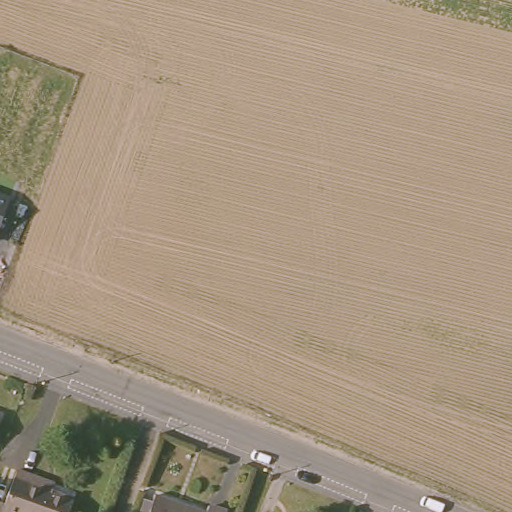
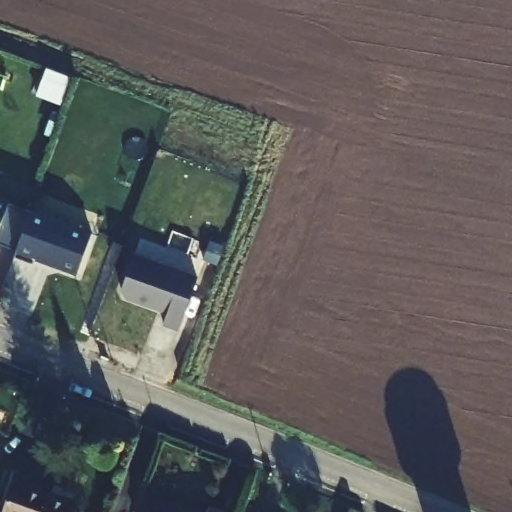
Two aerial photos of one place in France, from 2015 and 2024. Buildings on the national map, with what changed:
unchanged [(0,236),(0,189),(11,194),(0,236)]
new [(92,233),(77,273),(35,258),(33,263),(14,256),(31,211),(92,233)]
new [(125,298),(127,294),(122,292),(135,254),(198,276),(178,330),(163,325),(168,313),(125,298)]
unchanged [(3,512),(18,469),(37,475),(33,485),(75,500),(69,512),(3,512)]
unchanged [(152,508),(155,502),(185,512),(141,512),(143,505),(152,508)]
unchanged [(224,512),(210,512),(211,508),(224,512)]

